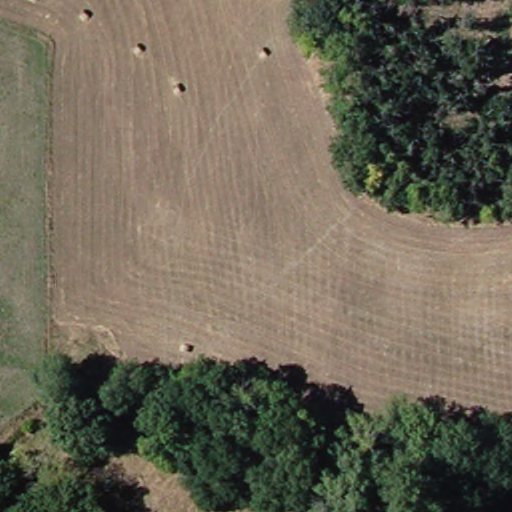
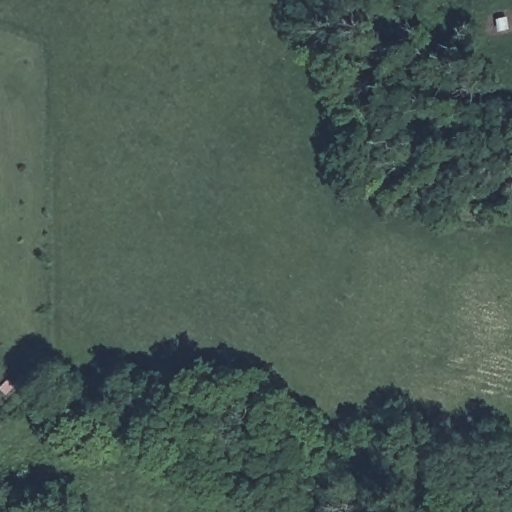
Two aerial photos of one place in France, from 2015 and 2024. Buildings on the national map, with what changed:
[]

